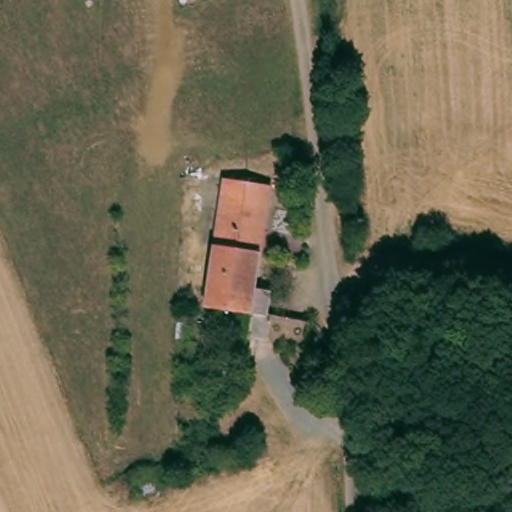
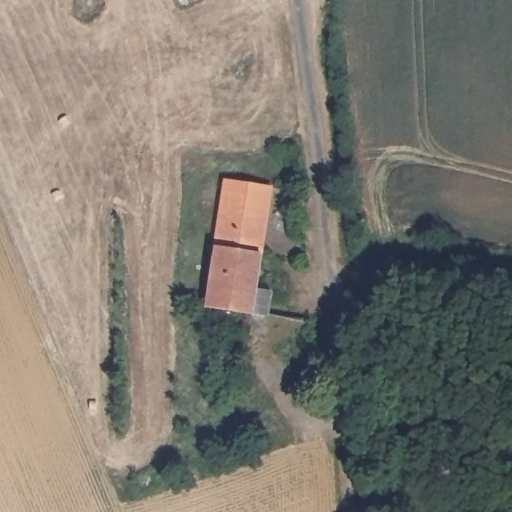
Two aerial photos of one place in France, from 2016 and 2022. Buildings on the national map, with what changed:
unchanged [(212,250),(220,184),(265,189),(257,256),(212,250)]
unchanged [(269,320),(250,317),(204,310),(212,250),(257,256),(253,290),(272,292),(269,320)]

